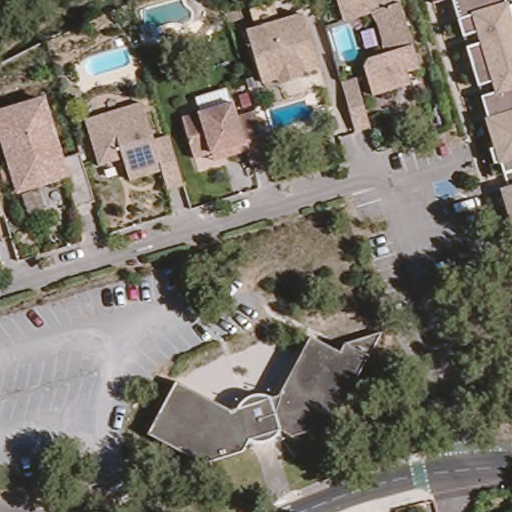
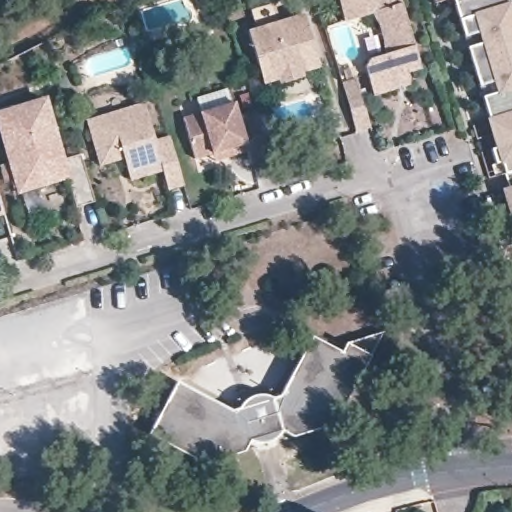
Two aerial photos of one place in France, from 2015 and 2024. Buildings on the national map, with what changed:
unchanged [(365,68),(369,60),(384,56),(384,42),(379,27),(372,14),(344,23),(337,0),(399,0),(421,69),(408,73),(412,84),(374,96),(365,68)]
unchanged [(432,5),(430,0),(447,0),(432,5)]
unchanged [(512,14),(512,115),(490,122),(449,0),(508,0),(512,14)]
unchanged [(285,83),(284,77),(268,82),(252,31),(260,28),(254,9),(278,2),(284,21),(308,13),(324,65),(306,70),(308,76),(285,83)]
unchanged [(76,205),(69,182),(67,174),(52,178),(39,183),(19,189),(1,131),(0,128),(0,110),(14,106),(44,97),(63,157),(80,151),(88,176),(95,199),(76,205)]
unchanged [(216,149),(199,155),(187,115),(238,99),(242,113),(260,108),(274,155),(259,160),(255,161),(251,147),(233,152),(218,157),(216,149)]
unchanged [(141,104),(152,143),(168,137),(184,192),(166,197),(159,177),(127,187),(119,162),(97,169),(83,122),(141,104)]
unchanged [(485,165),(491,162),(487,149),(490,147),(486,135),(492,134),(490,122),(512,115),(512,175),(489,181),(485,165)]
unchanged [(8,210),(0,212),(0,184),(8,210)]
unchanged [(510,231),(498,189),(512,185),(512,230),(510,231)]
unchanged [(231,407),(280,394),(311,335),(342,351),(346,343),(383,332),(334,424),(295,437),(283,430),(280,434),(277,437),(275,440),(271,441),(267,442),(262,443),(259,443),(255,443),(252,442),(249,441),(244,450),(205,463),(151,434),(178,380),(231,407)]

